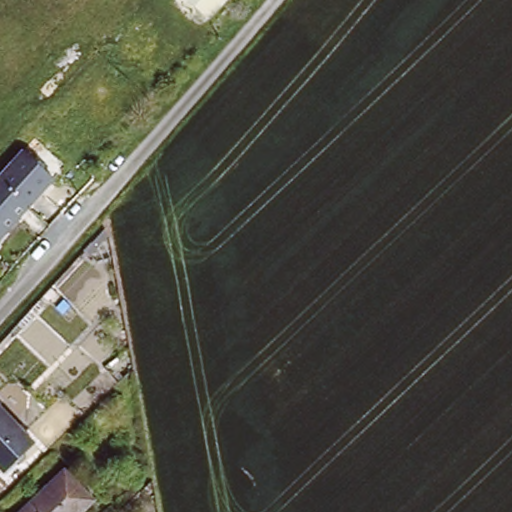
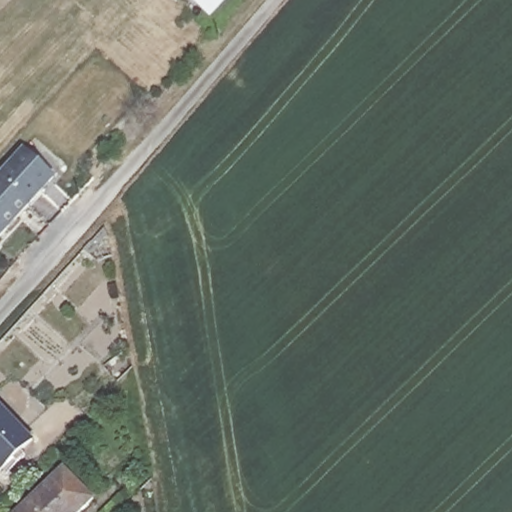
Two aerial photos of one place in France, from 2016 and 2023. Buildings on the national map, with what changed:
unchanged [(191,0),(226,0),(211,18),(191,0)]
unchanged [(0,183),(0,181),(24,155),(55,185),(31,211),(0,183)]
unchanged [(0,243),(0,183),(31,211),(0,243)]
unchanged [(5,470),(0,464),(0,405),(35,441),(5,470)]
unchanged [(89,512),(22,512),(68,467),(102,500),(89,512)]

